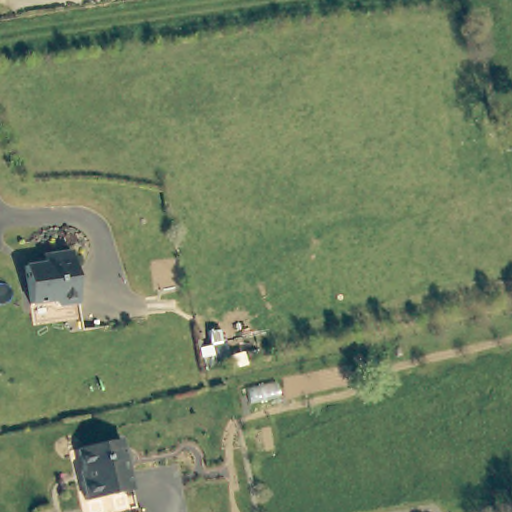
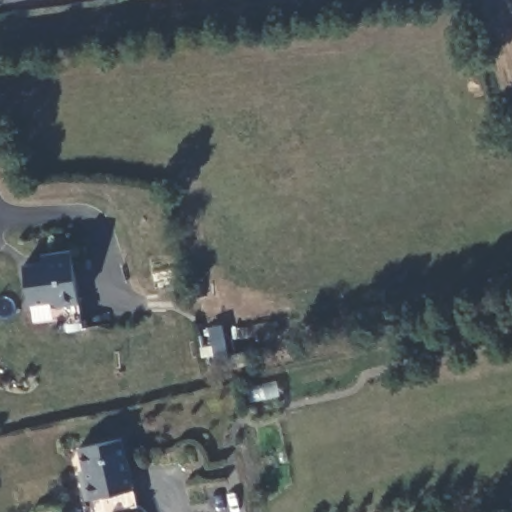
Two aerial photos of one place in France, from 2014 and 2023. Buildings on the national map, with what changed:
unchanged [(32,302),(27,262),(55,259),(54,251),(75,249),(81,301),(60,304),(54,300),(32,302)]
unchanged [(135,487),(89,498),(84,477),(87,476),(80,445),(124,435),(135,487)]

